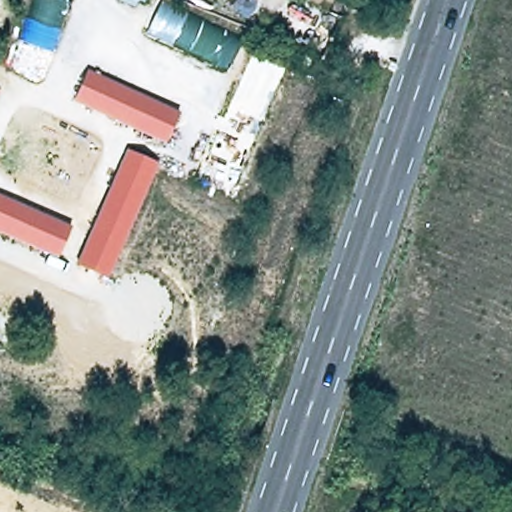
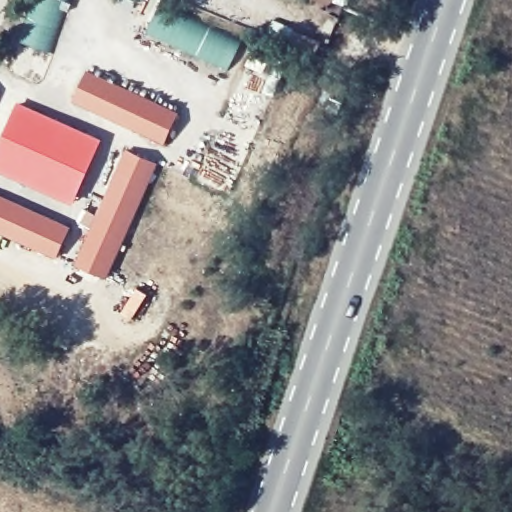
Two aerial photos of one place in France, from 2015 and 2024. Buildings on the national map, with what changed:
unchanged [(31,0),(71,0),(52,54),(17,40),(31,0)]
unchanged [(243,35),(228,70),(145,33),(160,0),(166,0),(243,35)]
unchanged [(90,67),(180,110),(163,144),(75,101),(90,67)]
new [(102,139),(72,206),(0,174),(0,138),(16,102),(102,139)]
unchanged [(157,164),(108,279),(75,263),(124,149),(157,164)]
unchanged [(56,257),(0,233),(0,193),(71,225),(56,257)]

